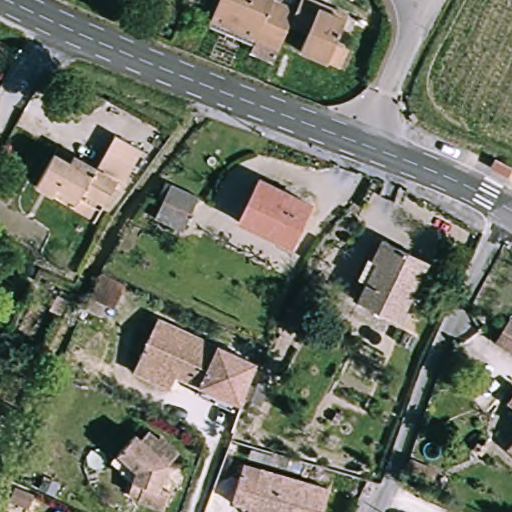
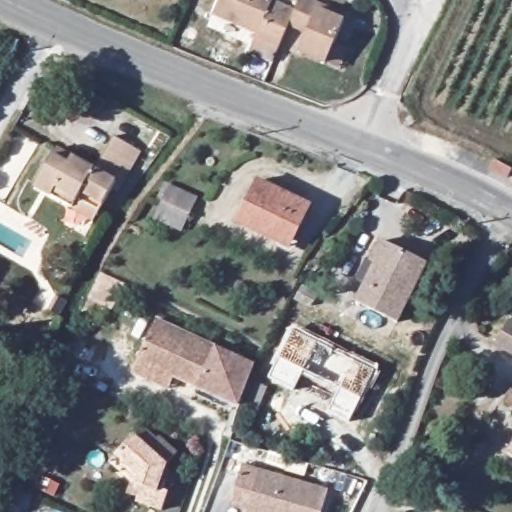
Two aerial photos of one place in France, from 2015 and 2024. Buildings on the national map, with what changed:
unchanged [(250,44),(208,24),(219,0),(276,0),(301,11),(294,25),(280,52),(253,37),(250,44)]
unchanged [(332,67),(303,52),(312,32),(294,25),(301,11),(306,0),(309,0),(354,21),(342,46),(356,52),(346,73),(332,67)]
unchanged [(61,202),(51,197),(36,187),(41,177),(58,151),(96,172),(117,137),(143,153),(120,191),(114,188),(100,211),(94,222),(61,202)]
unchanged [(312,204),(291,250),(239,224),(260,178),(312,204)]
unchanged [(167,194),(194,207),(185,225),(158,211),(167,194)]
unchanged [(405,322),(362,302),(381,263),(374,259),(383,241),(432,266),(405,322)]
unchanged [(135,370),(142,358),(164,315),(239,356),(218,397),(176,376),(170,387),(135,370)]
unchanged [(497,338),(507,327),(512,320),(512,350),(497,338)]
new [(350,421),(330,410),(338,393),(302,376),(294,392),(269,380),(294,330),(375,371),(350,421)]
unchanged [(510,399),(512,397),(512,400),(510,399)]
unchanged [(134,481),(111,462),(118,454),(137,433),(143,438),(151,430),(159,437),(163,434),(179,448),(166,463),(160,486),(168,488),(162,508),(139,501),(141,493),(131,490),(134,481)]
unchanged [(232,498),(245,460),(331,491),(323,512),(247,512),(250,505),(232,498)]
unchanged [(433,471),(426,484),(414,477),(420,465),(433,471)]

